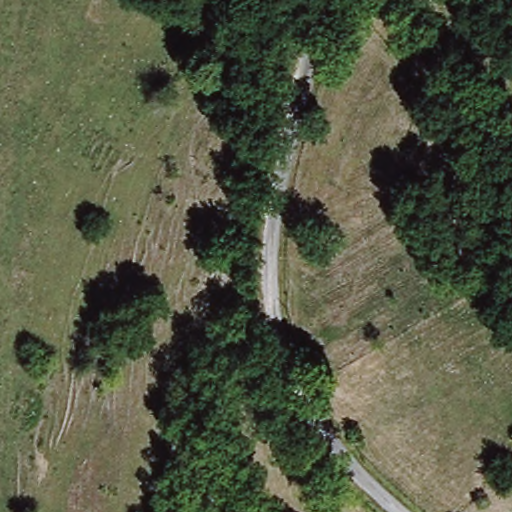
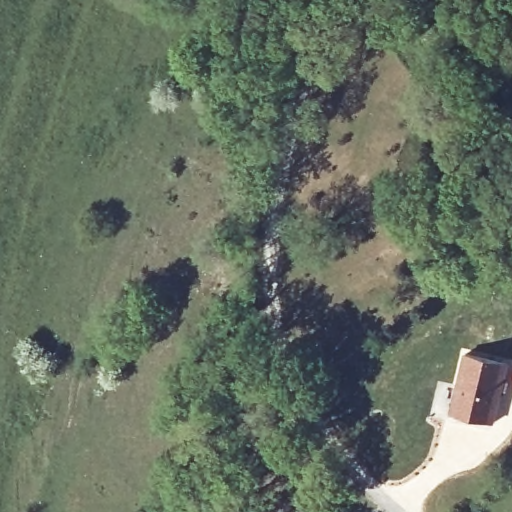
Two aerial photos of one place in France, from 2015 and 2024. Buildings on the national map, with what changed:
new [(462,352),(511,364),(494,425),(446,414),(462,352)]

